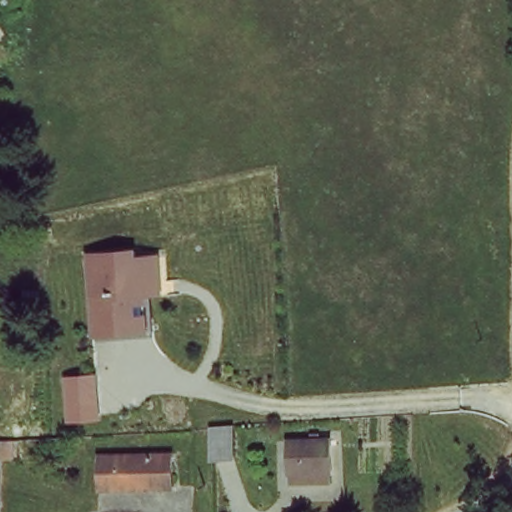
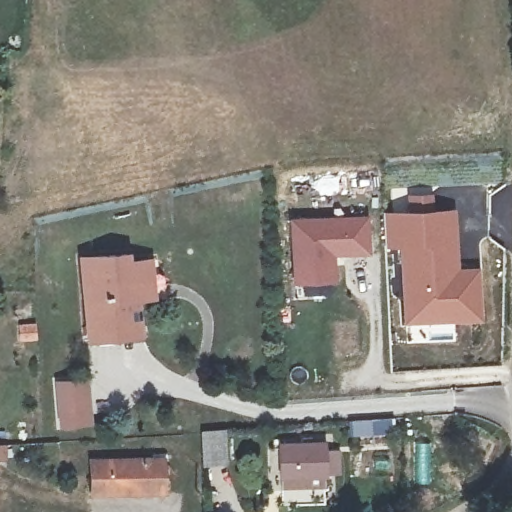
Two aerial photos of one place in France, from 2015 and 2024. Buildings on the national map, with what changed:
new [(477,316),(406,318),(402,245),(384,244),(383,215),(452,211),(455,270),(475,270),(477,316)]
new [(334,255),(334,281),(292,283),(290,218),(367,215),(369,251),(334,255)]
unchanged [(154,302),(134,302),(135,340),(87,342),(79,257),(149,252),(154,302)]
new [(57,382),(83,378),(90,420),(63,424),(57,382)]
unchanged [(193,418),(212,415),(212,447),(194,449),(193,418)]
unchanged [(283,477),(283,447),(323,443),(324,472),(283,477)]
unchanged [(87,492),(84,458),(156,450),(158,484),(87,492)]

